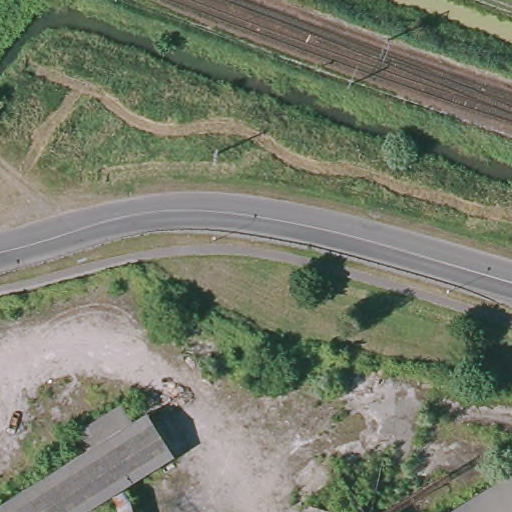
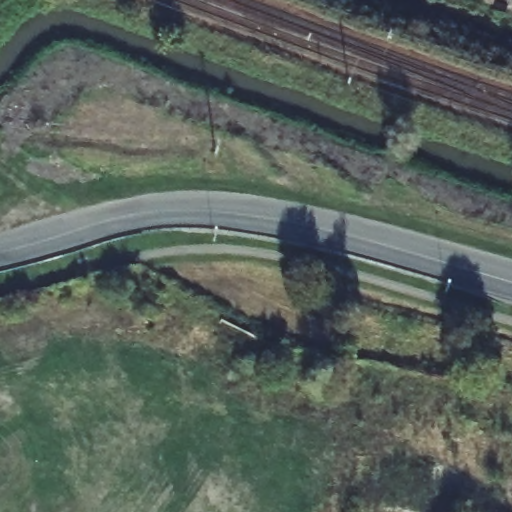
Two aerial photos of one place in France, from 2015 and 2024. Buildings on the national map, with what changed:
demolished [(77,512),(56,512),(56,511),(55,512),(0,512),(0,500),(142,411),(170,455),(77,512)]
demolished [(512,484),(512,512),(449,512),(507,476),(512,484)]

